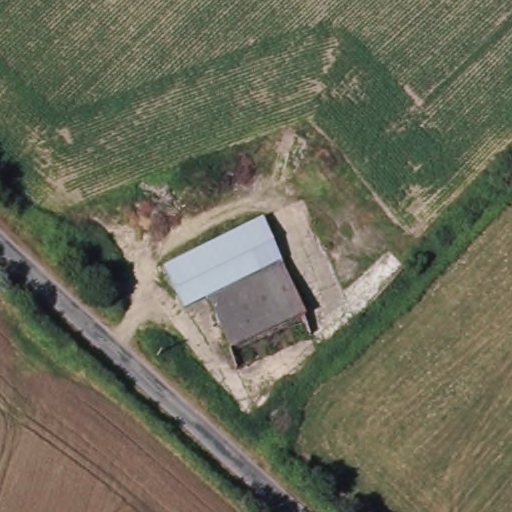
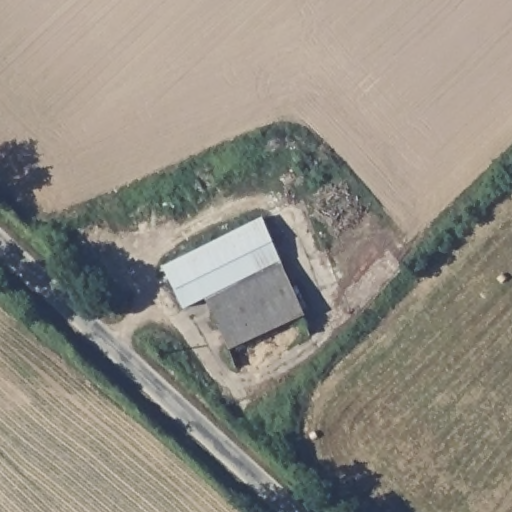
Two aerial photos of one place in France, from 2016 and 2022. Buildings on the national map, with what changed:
unchanged [(316,334),(241,367),(212,296),(190,307),(169,265),(267,217),(316,334)]

